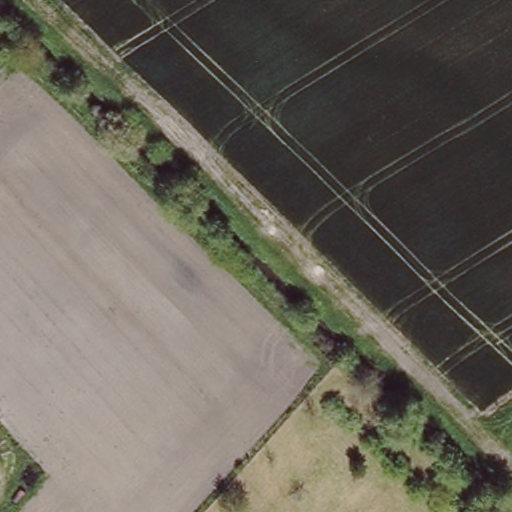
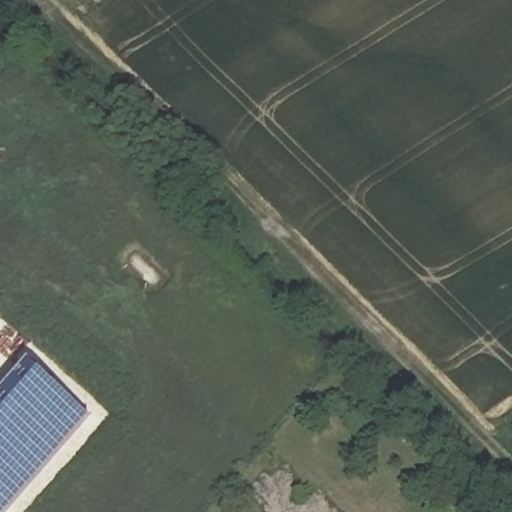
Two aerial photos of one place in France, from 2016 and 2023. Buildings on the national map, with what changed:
new [(89,419),(7,512),(0,512),(0,392),(25,363),(89,419)]

